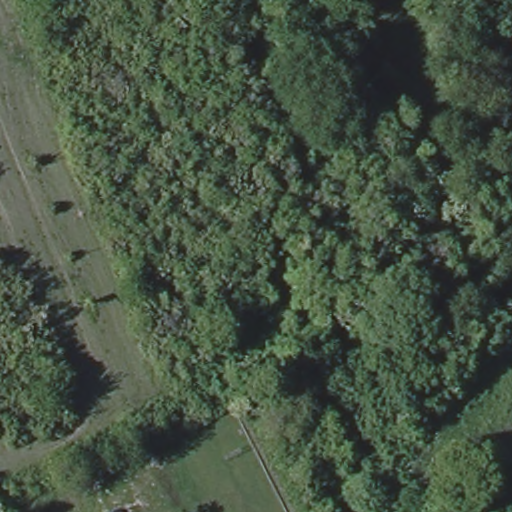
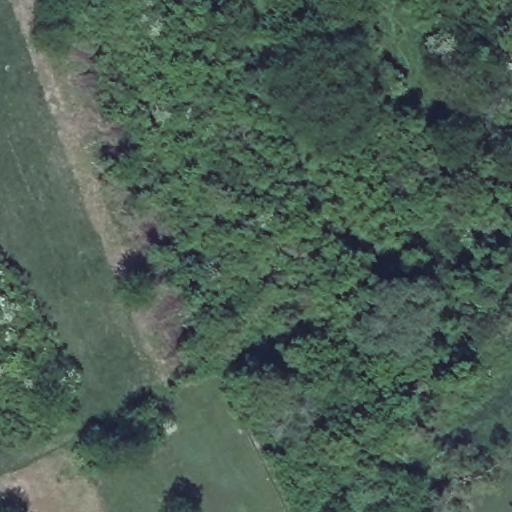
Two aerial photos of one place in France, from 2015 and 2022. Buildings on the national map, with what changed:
[]

